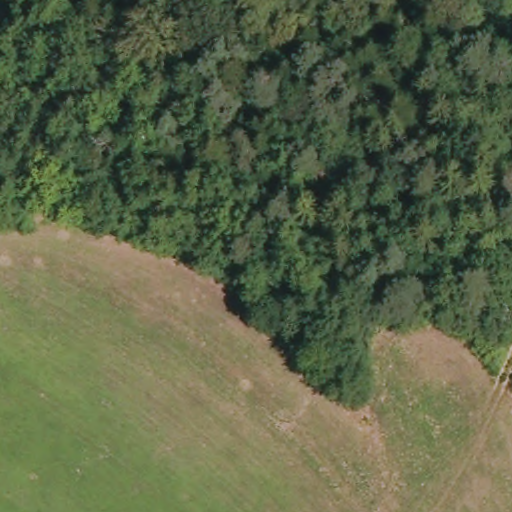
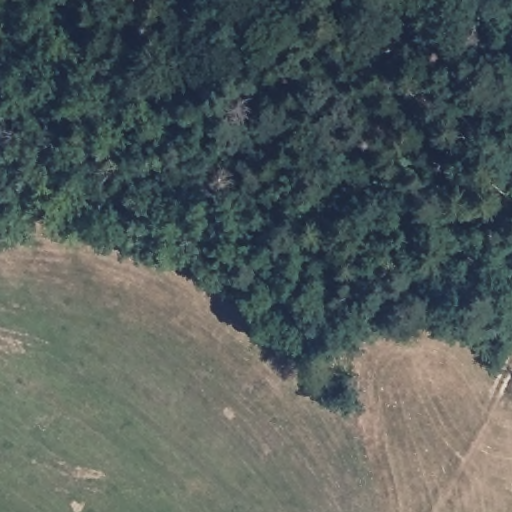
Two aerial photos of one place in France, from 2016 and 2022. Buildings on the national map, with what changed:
[]

